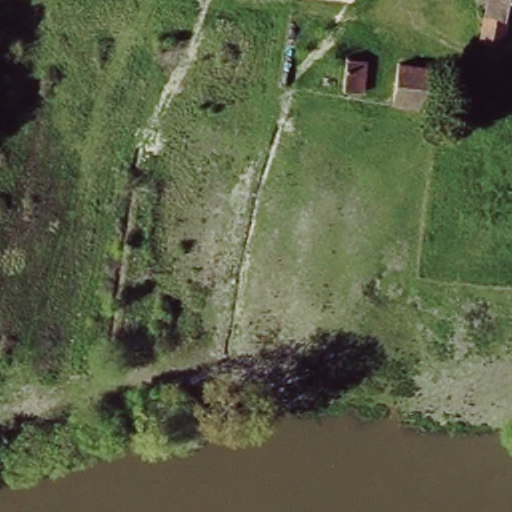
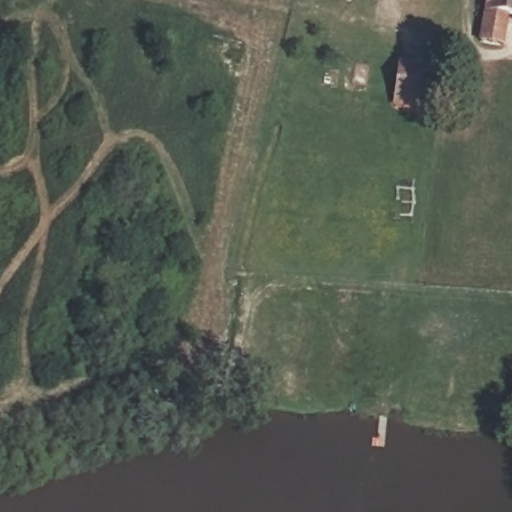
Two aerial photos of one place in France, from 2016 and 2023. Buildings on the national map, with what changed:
unchanged [(502,45),(476,41),(483,0),(512,0),(512,17),(510,17),(502,45)]
unchanged [(398,60),(446,67),(440,110),(390,107),(398,60)]

